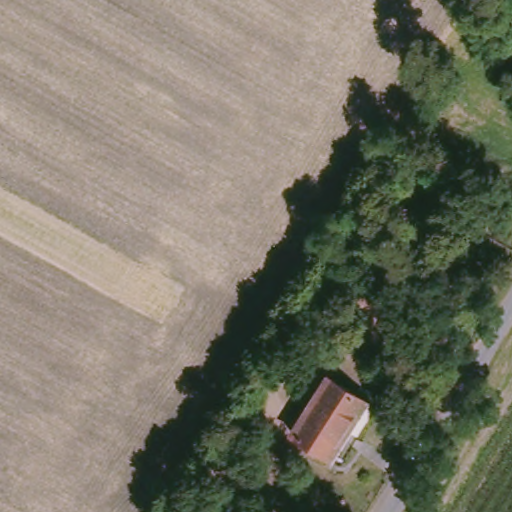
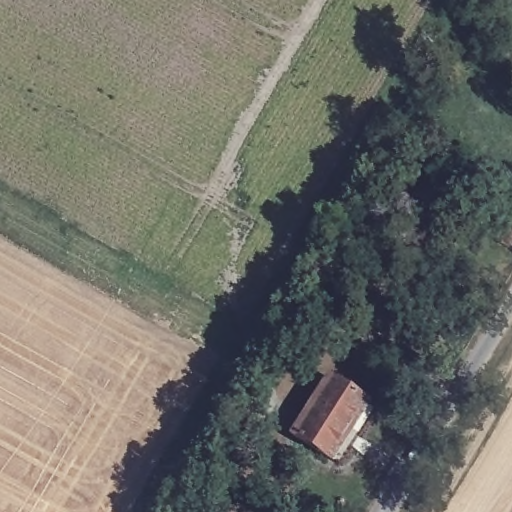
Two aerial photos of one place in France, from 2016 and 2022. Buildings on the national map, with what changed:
unchanged [(367,401),(328,460),(291,435),(330,378),(367,401)]

